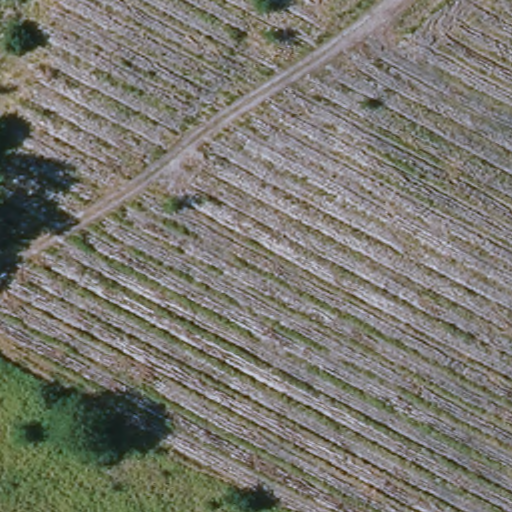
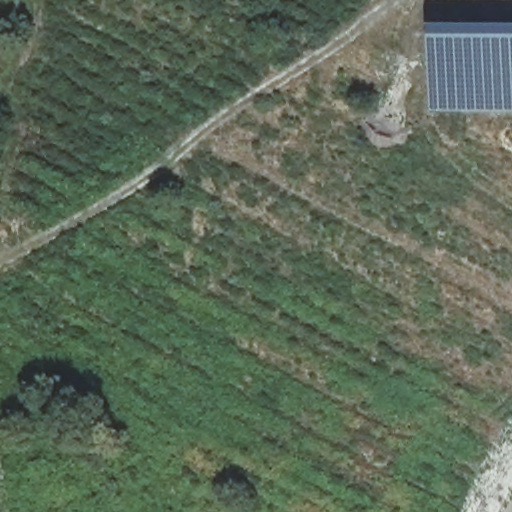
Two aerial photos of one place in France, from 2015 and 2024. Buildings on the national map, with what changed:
new [(512,25),(512,111),(435,111),(435,25),(512,25)]

